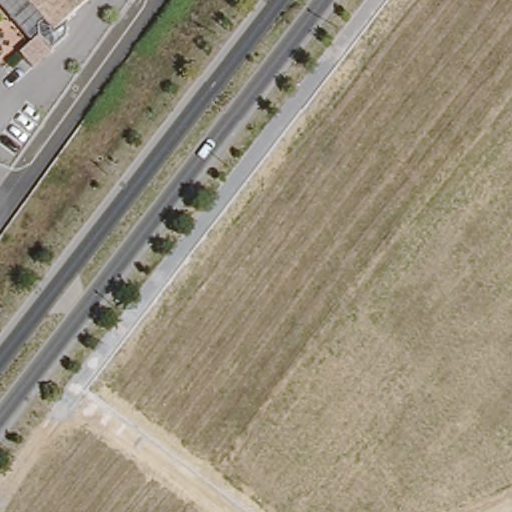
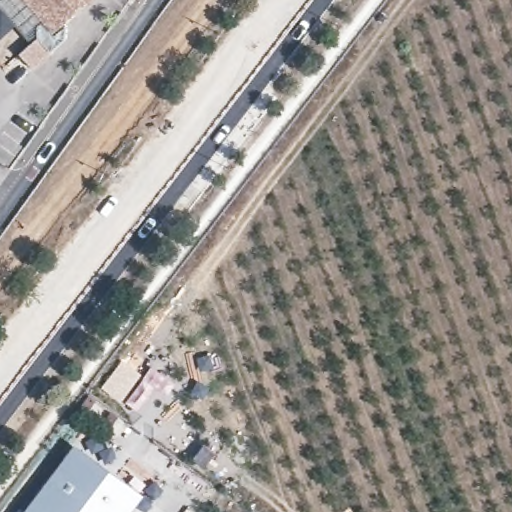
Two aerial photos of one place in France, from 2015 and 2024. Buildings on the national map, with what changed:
unchanged [(27,45),(0,11),(0,0),(89,0),(46,40),(53,48),(31,72),(15,56),(27,45)]
new [(122,359),(140,373),(122,400),(100,388),(122,359)]
new [(93,456),(128,482),(135,475),(146,483),(140,491),(143,493),(130,512),(21,512),(73,442),(83,447),(93,456)]

